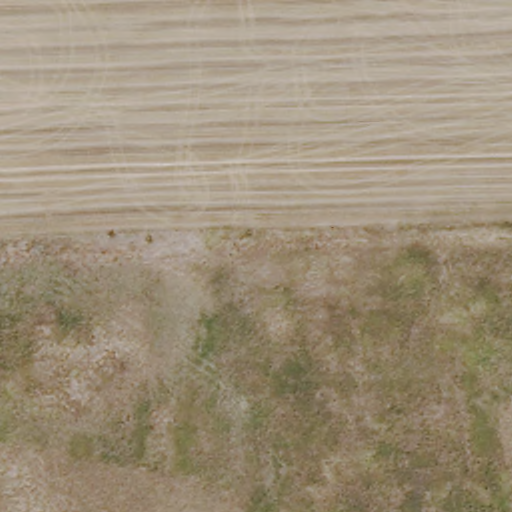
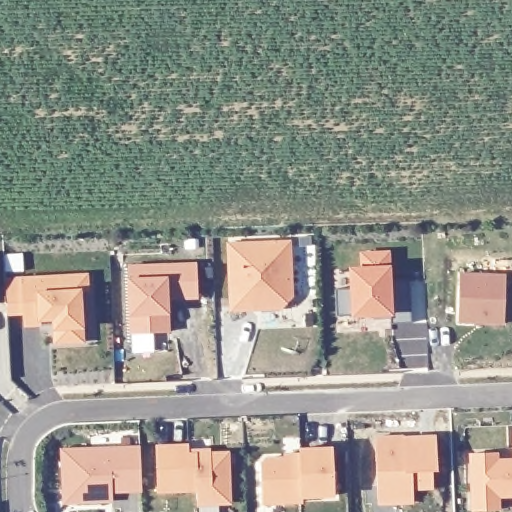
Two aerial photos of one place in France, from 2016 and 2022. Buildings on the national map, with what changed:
new [(227,243),(292,241),(293,297),(282,310),(229,312),(227,243)]
new [(391,323),(390,318),(373,319),(373,314),(351,315),(337,316),(336,290),(349,290),(348,268),(360,268),(359,252),(389,251),(390,266),(390,282),(410,281),(411,323),(391,323)]
new [(129,333),(128,314),(128,278),(128,266),(195,263),(197,300),(167,300),(168,316),(168,332),(129,333)]
new [(457,323),(460,273),(505,274),(503,325),(457,323)]
new [(5,278),(22,277),(88,274),(88,291),(82,292),(84,328),(84,344),(55,346),(52,330),(52,322),(40,322),(40,327),(23,328),(23,315),(7,317),(5,278)]
new [(375,436),(434,434),(433,490),(412,490),(413,504),(377,506),(375,436)]
new [(196,505),(196,492),(157,494),(156,446),(188,444),(189,449),(210,449),(211,452),(229,452),(231,504),(196,505)]
new [(62,504),(60,449),(140,446),(142,492),(111,493),(111,503),(62,504)]
new [(335,498),(302,499),(302,504),(262,505),(262,463),(266,457),(283,456),(283,454),(300,453),(300,448),(332,447),(335,498)]
new [(500,511),(471,511),(468,454),(500,452),(499,459),(512,459),(512,498),(500,499),(500,511)]

